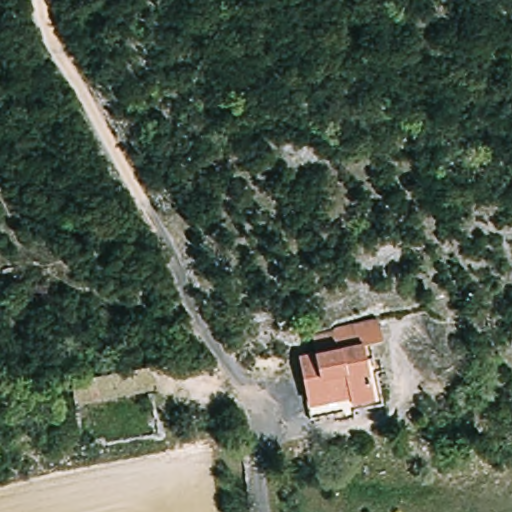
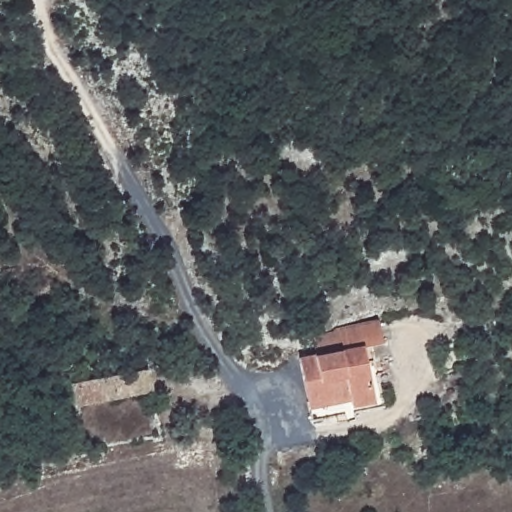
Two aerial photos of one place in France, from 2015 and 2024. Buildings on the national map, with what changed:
unchanged [(320,333),(340,331),(341,325),(387,322),(387,340),(379,340),(379,360),(372,362),(370,387),(373,389),(374,400),(350,401),(349,392),(307,396),(302,350),(321,349),(320,333)]
unchanged [(80,404),(74,375),(145,362),(150,392),(80,404)]

